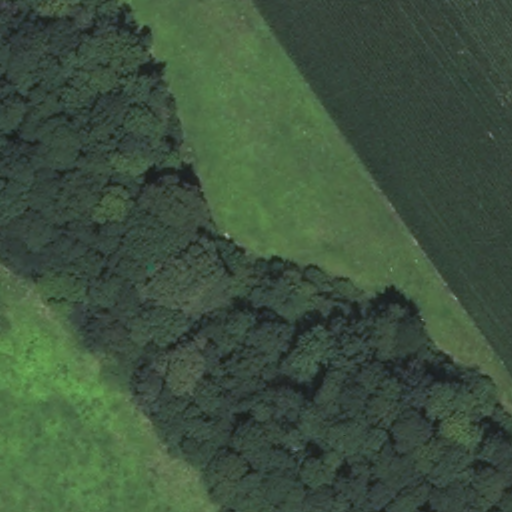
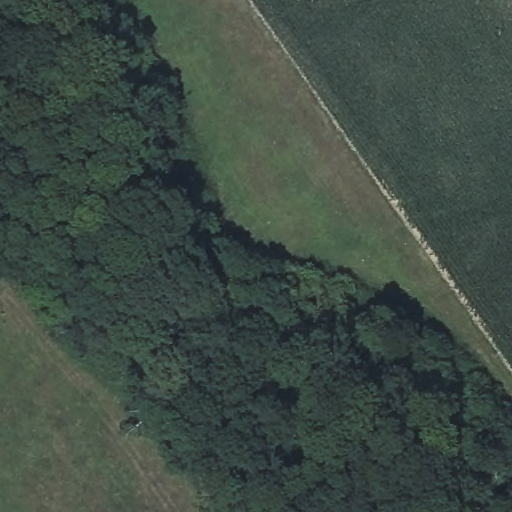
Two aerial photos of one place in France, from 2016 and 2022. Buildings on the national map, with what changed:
unchanged [(20,334),(34,331),(37,345),(24,347),(20,334)]

